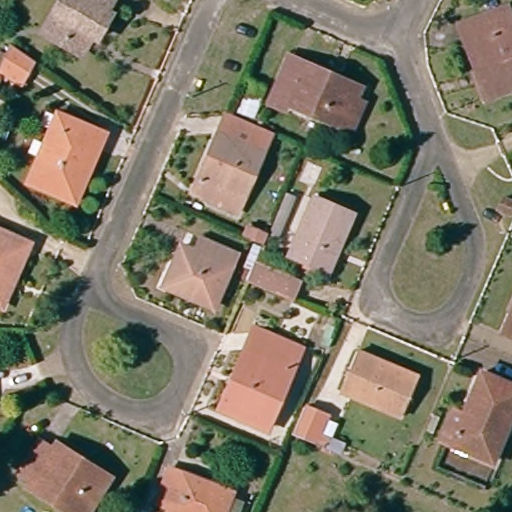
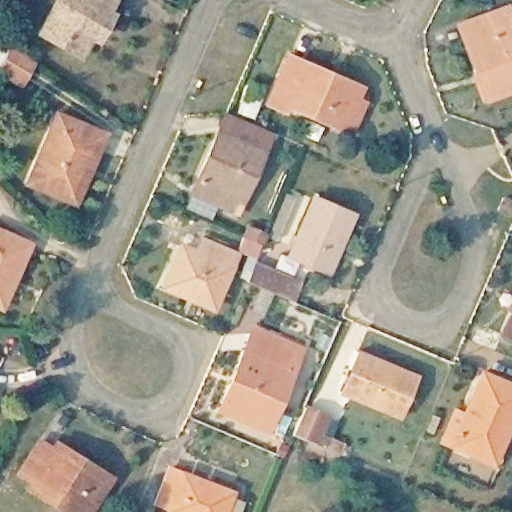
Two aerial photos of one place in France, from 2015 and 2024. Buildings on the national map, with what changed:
unchanged [(56,22),(68,0),(120,0),(88,56),(68,45),(49,35),(56,22)]
unchanged [(512,13),(512,78),(478,87),(472,69),(480,65),(463,14),(507,0),(512,13)]
unchanged [(30,69),(19,89),(0,78),(0,65),(5,53),(30,69)]
unchanged [(352,135),(319,119),(289,105),(284,111),(265,102),(286,54),(305,61),(333,74),(359,85),(354,101),(364,106),(352,135)]
unchanged [(107,140),(99,160),(88,156),(67,205),(29,189),(59,116),(107,140)]
unchanged [(268,141),(259,164),(211,142),(221,120),(268,141)]
unchanged [(192,183),(211,142),(259,164),(232,224),(207,214),(184,201),(192,183)]
unchanged [(349,212),(324,275),(284,259),(310,197),(349,212)]
unchanged [(512,202),(512,224),(499,217),(508,200),(512,202)]
unchanged [(26,278),(17,275),(6,302),(0,300),(0,228),(38,242),(26,278)]
unchanged [(170,273),(182,245),(201,252),(207,237),(239,254),(216,308),(195,299),(165,285),(170,273)]
unchanged [(247,280),(255,260),(292,275),(304,281),(297,303),(284,297),(247,280)]
unchanged [(503,326),(512,306),(512,330),(503,326)]
unchanged [(257,330),(303,352),(293,375),(280,368),(260,415),(227,398),(257,330)]
unchanged [(425,380),(407,420),(356,398),(341,391),(352,365),(359,350),(425,380)]
unchanged [(260,415),(280,368),(293,375),(268,429),(222,408),(227,398),(260,415)]
unchanged [(453,413),(464,419),(484,377),(512,389),(512,431),(511,432),(502,427),(485,461),(452,445),(441,440),(453,413)]
unchanged [(303,407),(328,418),(316,448),(289,438),(303,407)]
unchanged [(113,475),(90,512),(80,512),(33,483),(38,477),(23,468),(43,438),(55,448),(61,439),(113,475)]
unchanged [(228,512),(171,512),(174,504),(161,498),(175,465),(236,493),(228,512)]

